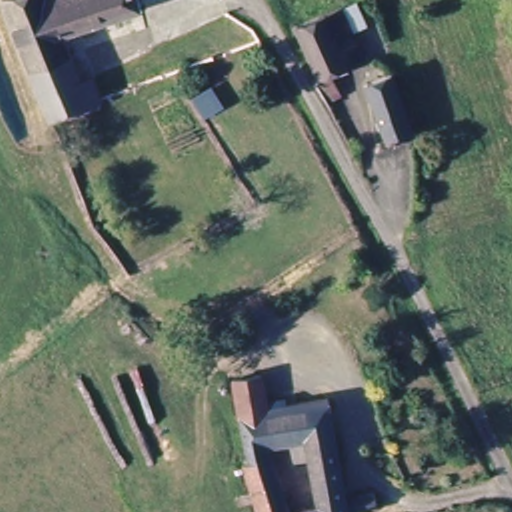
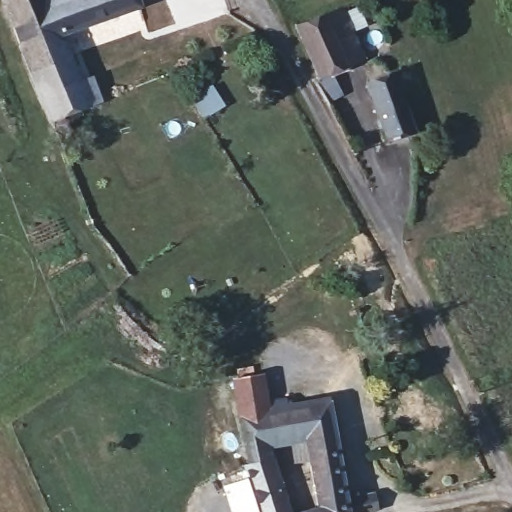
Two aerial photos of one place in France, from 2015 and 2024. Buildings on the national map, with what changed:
unchanged [(14,0),(141,0),(142,4),(65,36),(84,87),(94,83),(101,100),(104,107),(52,127),(4,5),(14,0)]
unchanged [(314,92),(307,80),(315,75),(292,29),(341,8),(362,55),(323,75),(331,87),(323,91),(317,95),(314,92)]
unchanged [(363,82),(375,76),(390,69),(416,127),(387,140),(363,82)]
unchanged [(272,418),(292,416),(288,396),(321,392),(326,411),(351,510),(379,502),(381,512),(326,512),(312,455),(301,457),(297,441),(276,447),(293,512),(260,512),(245,467),(250,465),(235,385),(263,380),(272,418)]

